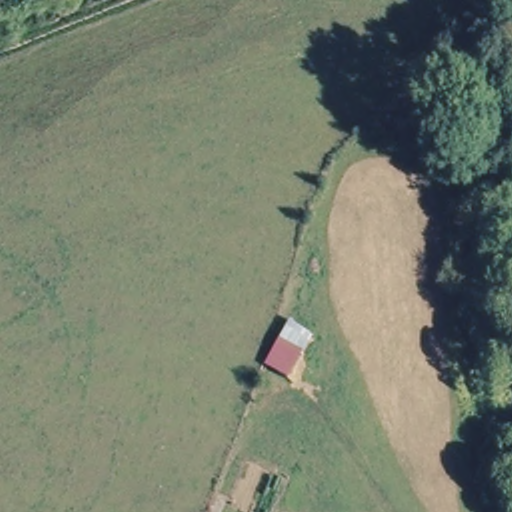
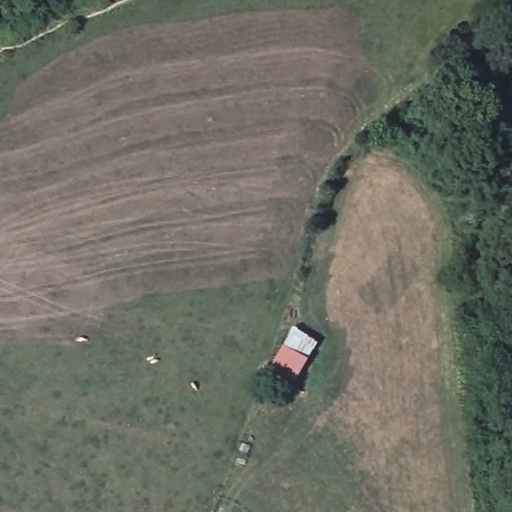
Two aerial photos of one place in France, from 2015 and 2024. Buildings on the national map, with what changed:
unchanged [(320,347),(294,392),(265,377),(292,329),(320,347)]

